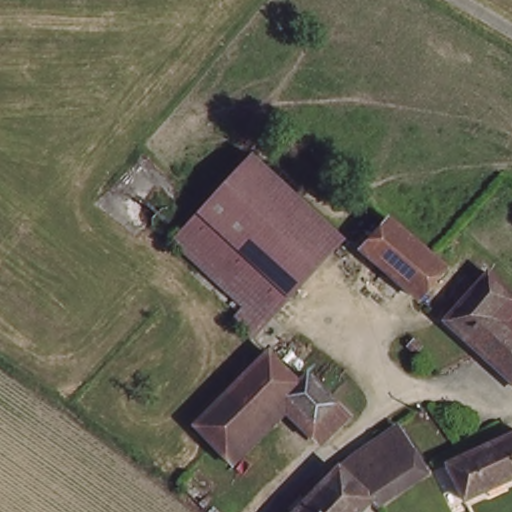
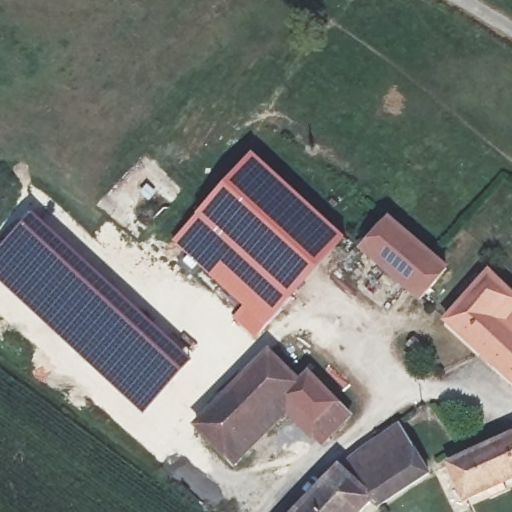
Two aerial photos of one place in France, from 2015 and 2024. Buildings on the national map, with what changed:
unchanged [(346,239),(293,294),(268,270),(203,208),(257,153),(322,216),(346,239)]
unchanged [(268,270),(238,300),(173,239),(203,208),(268,270)]
new [(2,245),(35,210),(45,219),(50,213),(115,270),(165,319),(160,324),(195,358),(142,415),(0,285),(0,248),(2,245)]
unchanged [(387,213),(447,260),(424,288),(373,248),(365,255),(355,248),(387,213)]
unchanged [(255,333),(236,314),(243,306),(238,300),(268,270),(293,294),(255,333)]
unchanged [(487,273),(512,297),(512,339),(492,357),(447,312),(487,273)]
unchanged [(491,358),(492,357),(512,339),(512,380),(506,374),(491,358)]
unchanged [(325,450),(315,439),(278,403),(243,435),(228,449),(200,421),(217,407),(259,370),(285,348),(307,372),(312,369),(315,366),(351,407),(362,419),(325,450)]
unchanged [(343,468),(382,440),(398,429),(400,431),(435,478),(382,512),(367,496),(343,468)]
unchanged [(512,434),(512,471),(472,494),(455,463),(510,431),(512,434)]
unchanged [(351,512),(294,512),(343,468),(367,496),(351,512)]

